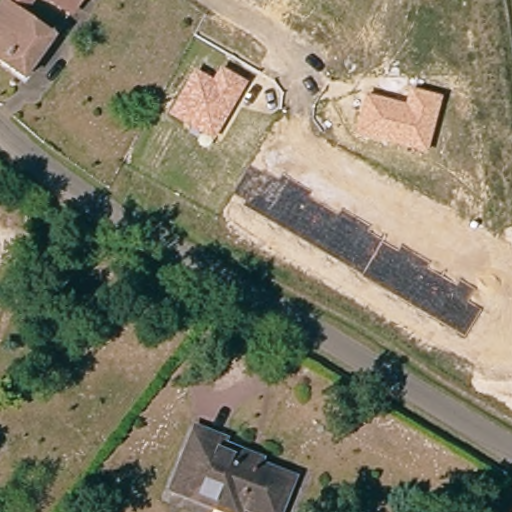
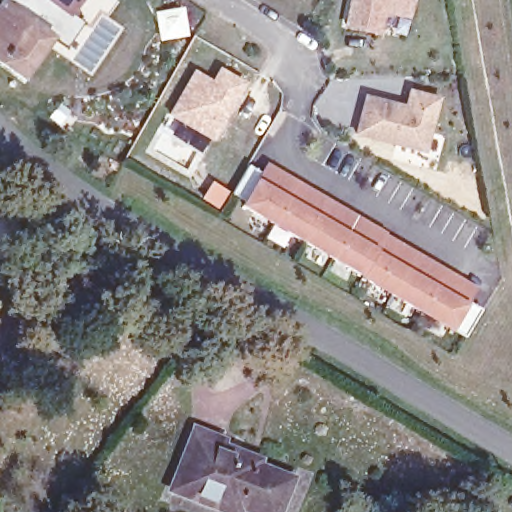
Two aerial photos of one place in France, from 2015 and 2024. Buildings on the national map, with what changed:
unchanged [(8,0),(25,0),(17,13),(54,40),(21,83),(0,67),(0,11),(8,0)]
unchanged [(74,17),(49,0),(87,0),(74,17)]
new [(355,2),(355,0),(414,0),(409,28),(384,23),(379,44),(347,38),(352,12),(355,2)]
unchanged [(168,115),(193,69),(212,79),(218,67),(247,83),(214,141),(168,115)]
unchanged [(355,136),(365,94),(405,104),(408,89),(442,98),(427,155),(355,136)]
new [(451,331),(243,207),(246,201),(234,194),(250,166),(262,174),(268,163),(479,288),(471,302),(482,309),(465,337),(451,331)]
unchanged [(191,463),(182,459),(194,430),(224,443),(223,449),(250,460),(248,464),(296,484),(284,512),(250,512),(242,509),(240,512),(227,512),(179,491),(191,463)]

